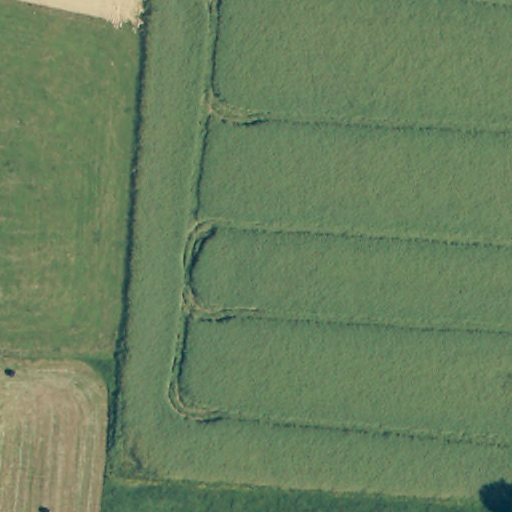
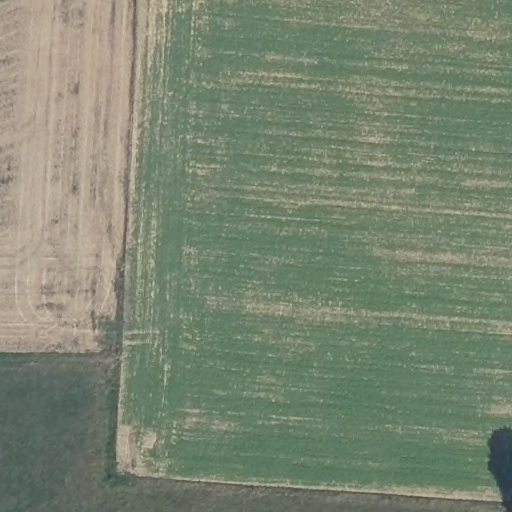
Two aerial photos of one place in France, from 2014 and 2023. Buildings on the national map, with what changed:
[]

